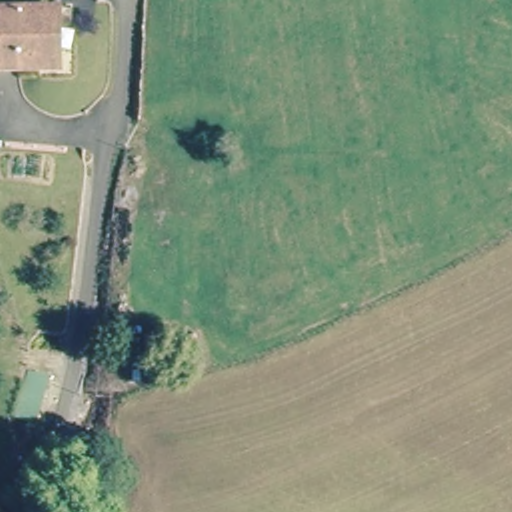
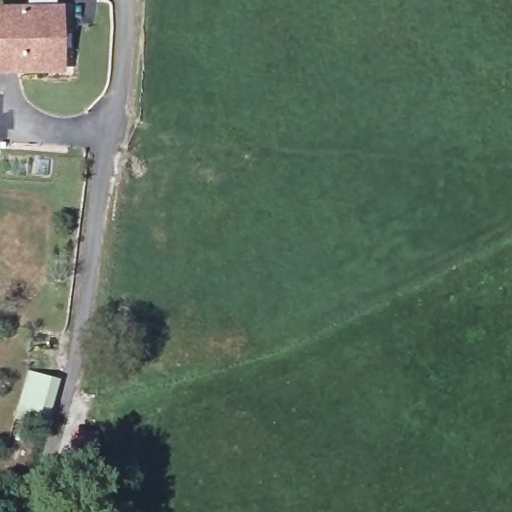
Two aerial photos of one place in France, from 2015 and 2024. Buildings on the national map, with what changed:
unchanged [(2,9),(59,9),(61,73),(3,74),(2,9)]

